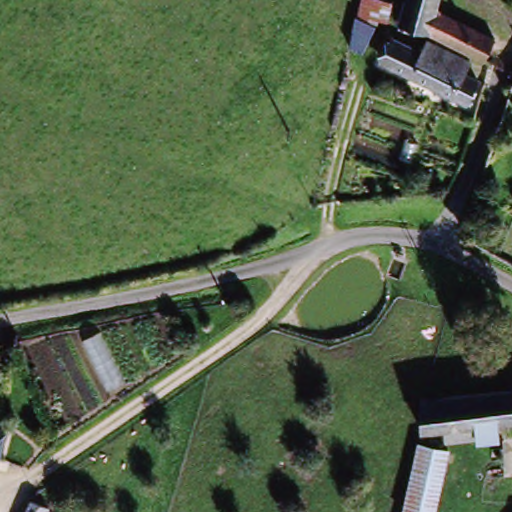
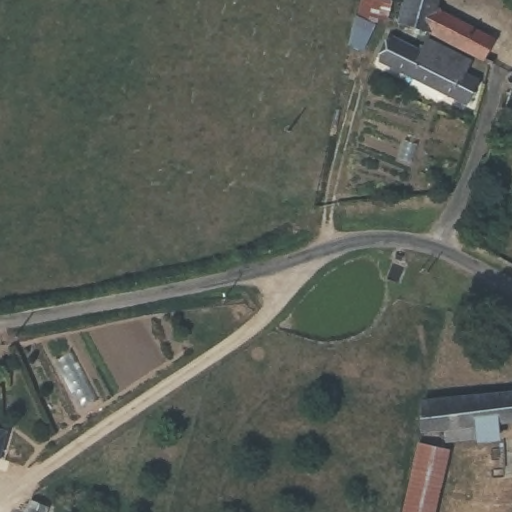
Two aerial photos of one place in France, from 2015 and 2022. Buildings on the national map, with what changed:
unchanged [(430,27),(398,21),(403,0),(439,0),(437,7),(430,27)]
unchanged [(437,7),(489,38),(480,58),(430,27),(437,7)]
unchanged [(382,36),(374,55),(360,49),(364,25),(382,36)]
unchanged [(468,108),(420,81),(395,68),(407,46),(432,61),(439,51),(476,73),(469,84),(480,91),(468,108)]
unchanged [(478,440),(442,444),(442,437),(418,437),(417,404),(423,404),(512,390),(512,424),(497,426),(497,438),(478,440)]
unchanged [(5,449),(15,452),(12,468),(0,464),(0,437),(7,439),(5,449)]
unchanged [(445,459),(430,512),(401,512),(415,451),(445,459)]
unchanged [(46,512),(27,512),(30,504),(47,510),(46,512)]

